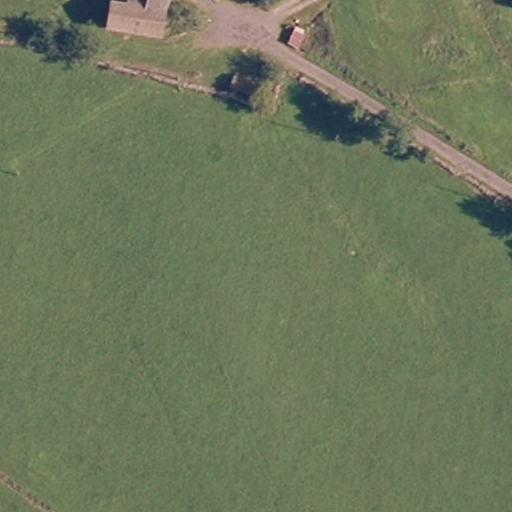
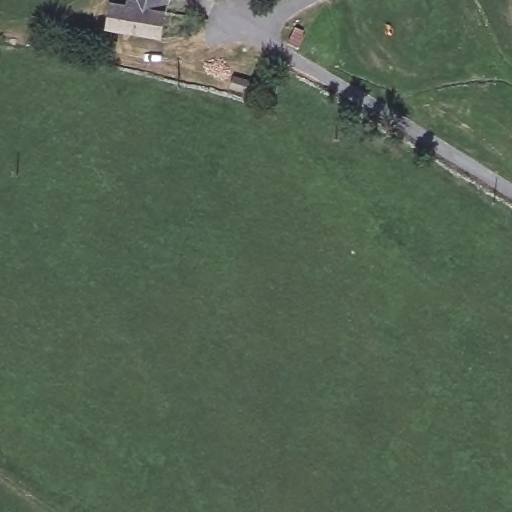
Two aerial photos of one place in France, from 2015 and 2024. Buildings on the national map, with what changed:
unchanged [(129,9),(132,0),(167,0),(162,20),(129,9)]
unchanged [(252,0),(267,0),(265,5),(252,0)]
unchanged [(156,42),(106,27),(111,5),(129,9),(162,20),(156,42)]

